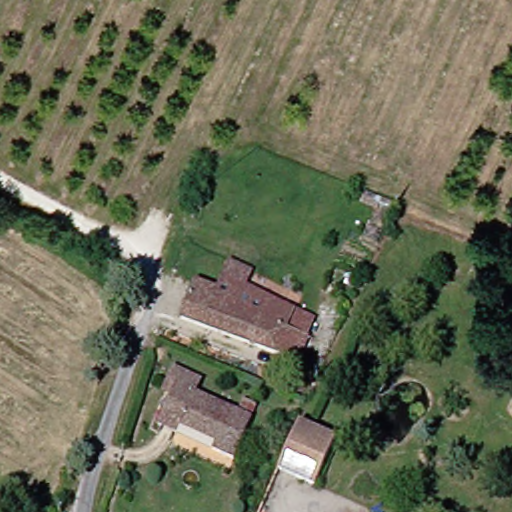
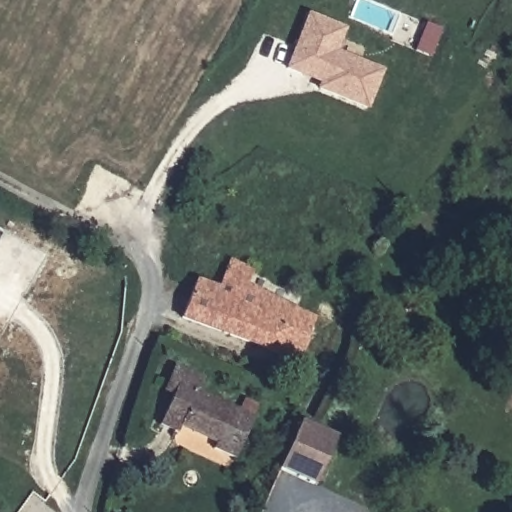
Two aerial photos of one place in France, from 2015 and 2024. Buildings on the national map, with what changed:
new [(283,70),(306,16),(341,30),(332,53),(379,71),(364,109),(316,90),(318,84),(298,76),(283,70)]
unchanged [(234,261),(307,296),(301,312),(227,277),(234,261)]
unchanged [(293,329),(312,337),(301,362),(187,315),(201,282),(222,290),(227,277),(301,312),(293,329)]
unchanged [(202,393),(257,419),(240,457),(219,447),(221,441),(186,425),(182,432),(164,424),(182,384),(202,393)]
unchanged [(318,486),(282,470),(303,422),(340,439),(318,486)]

